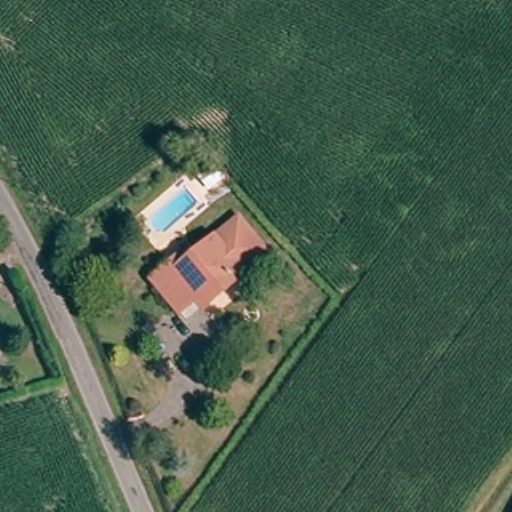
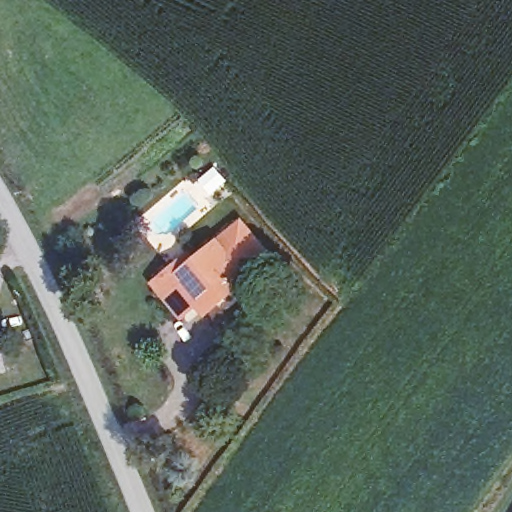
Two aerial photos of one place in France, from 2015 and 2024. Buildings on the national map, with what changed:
unchanged [(273,265),(256,280),(251,275),(211,309),(204,300),(184,316),(155,281),(174,265),(195,245),(204,256),(240,225),(273,265)]

